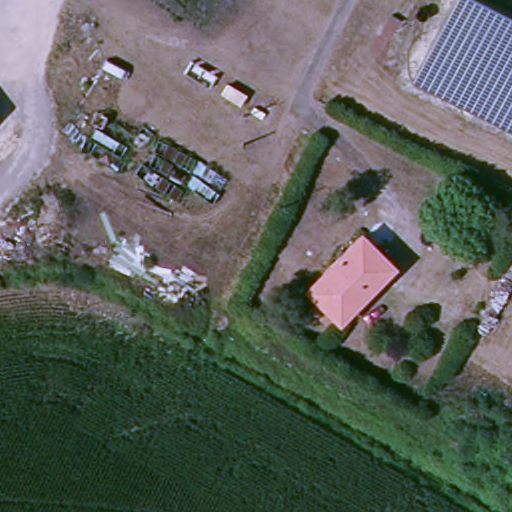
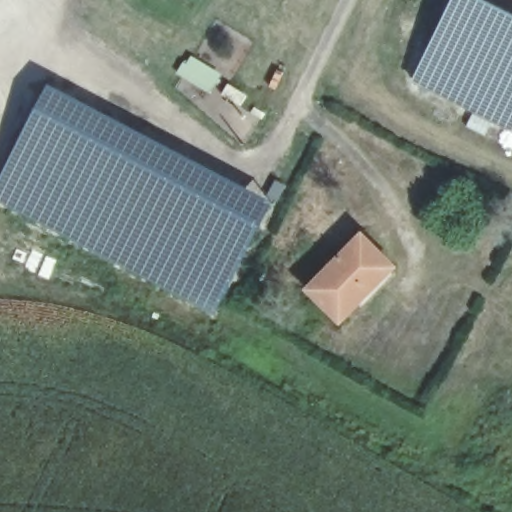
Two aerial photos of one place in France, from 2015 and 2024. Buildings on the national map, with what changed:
unchanged [(512,129),(411,77),(453,0),(483,0),(512,15),(512,129)]
new [(188,53),(221,74),(209,95),(174,74),(188,53)]
new [(48,85),(265,197),(274,180),(286,186),(276,202),(270,210),(218,296),(192,283),(166,265),(159,278),(84,247),(0,203),(0,176),(48,85)]
demolished [(287,141),(297,149),(293,154),(283,145),(287,141)]
unchanged [(347,317),(315,286),(364,237),(394,266),(347,317)]

